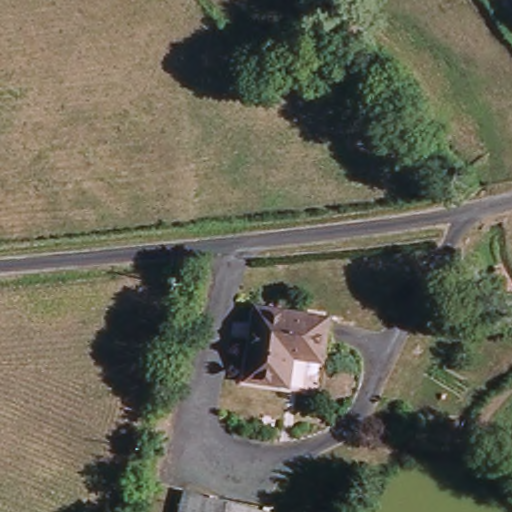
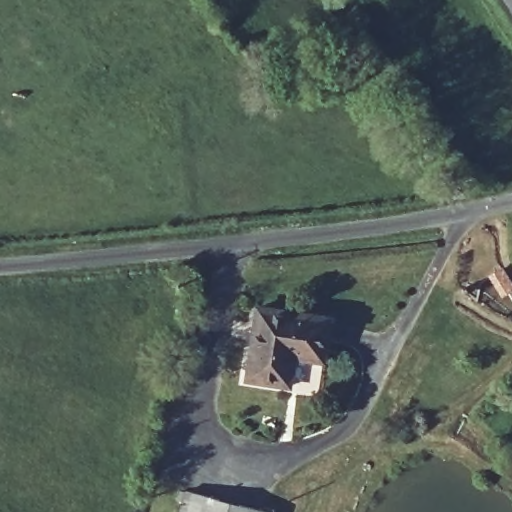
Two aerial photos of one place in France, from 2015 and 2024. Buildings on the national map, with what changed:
unchanged [(497,272),(503,269),(512,285),(512,289),(503,294),(492,275),(497,272)]
unchanged [(257,305),(331,315),(326,357),(296,354),(292,385),(248,379),(257,305)]
unchanged [(263,512),(185,512),(190,493),(263,512)]

